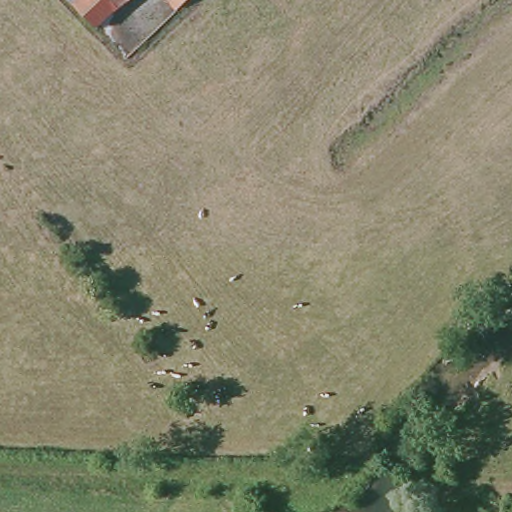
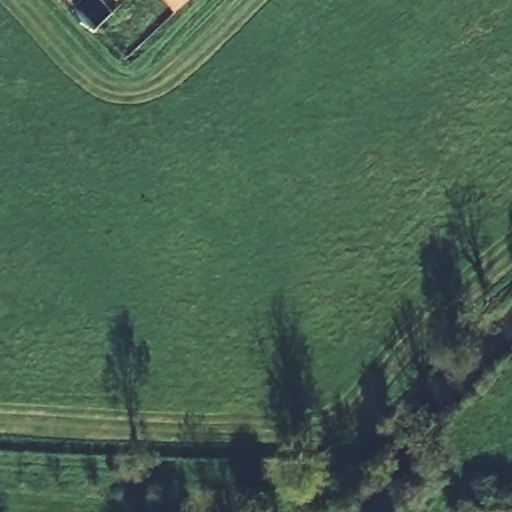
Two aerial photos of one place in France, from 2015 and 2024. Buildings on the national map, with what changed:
unchanged [(88,28),(60,0),(119,0),(88,28)]
unchanged [(166,7),(160,0),(173,0),(166,7)]

